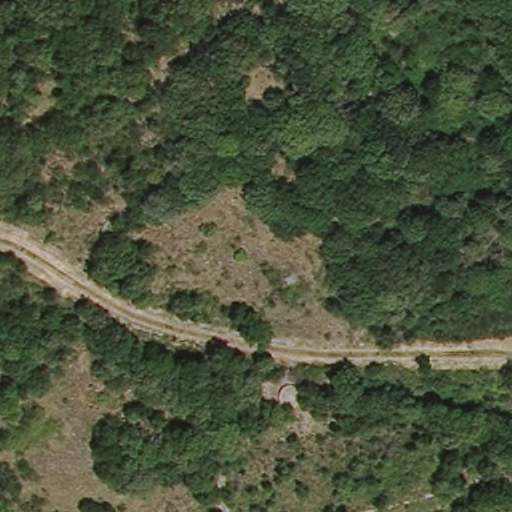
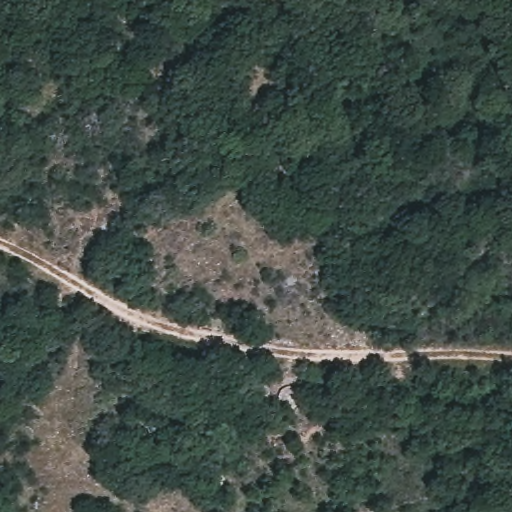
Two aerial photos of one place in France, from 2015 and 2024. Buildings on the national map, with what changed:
unchanged [(297,387),(301,395),(297,404),(290,407),(281,404),(278,395),(281,387),(290,384),(297,387)]

